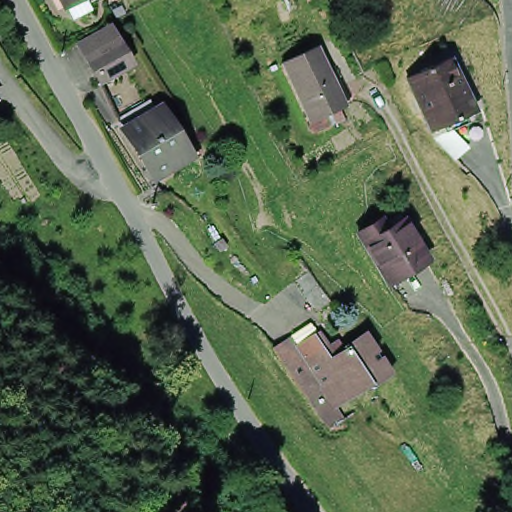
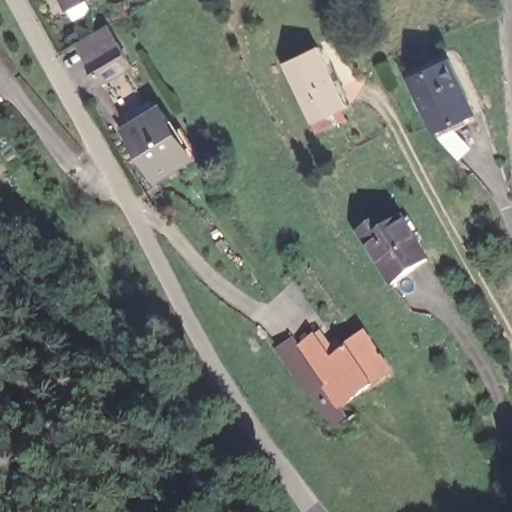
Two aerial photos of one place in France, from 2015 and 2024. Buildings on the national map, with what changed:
unchanged [(71,0),(77,0),(72,2),(71,0)]
unchanged [(137,65),(107,84),(92,60),(82,42),(111,26),(120,42),(122,40),(137,65)]
unchanged [(350,105),(318,121),(291,63),(322,49),(350,105)]
unchanged [(480,111),(440,132),(414,77),(455,58),(480,111)]
unchanged [(0,93),(0,84),(4,90),(0,93)]
unchanged [(185,152),(148,175),(122,132),(158,108),(185,152)]
unchanged [(383,215),(390,226),(402,217),(428,256),(396,278),(360,232),(383,215)]
unchanged [(306,357),(320,347),(327,357),(347,343),(373,377),(322,416),(276,357),(296,342),(306,357)]

